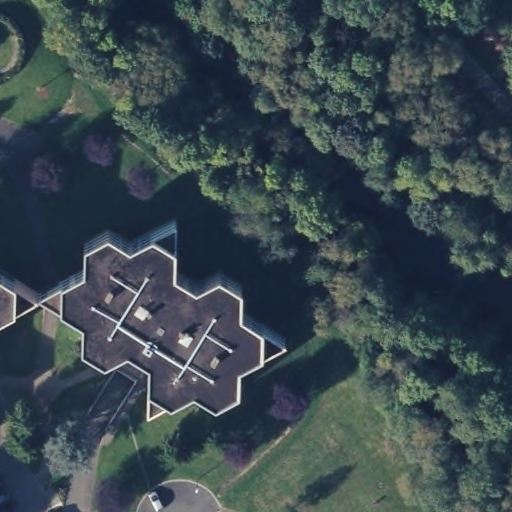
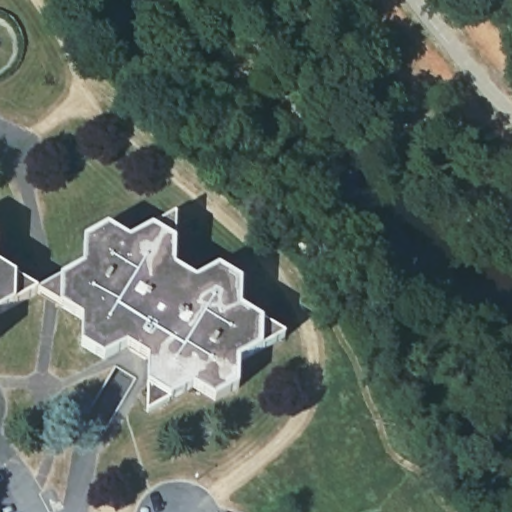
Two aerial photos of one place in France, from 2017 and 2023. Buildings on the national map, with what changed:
unchanged [(38,290),(84,262),(85,237),(108,224),(130,237),(176,213),(176,265),(196,278),(219,266),(242,280),(242,305),(286,333),(240,358),(239,384),(216,397),(194,384),(147,408),(147,382),(82,341),(82,315),(38,290)]
unchanged [(0,310),(0,265),(37,290),(0,310)]

